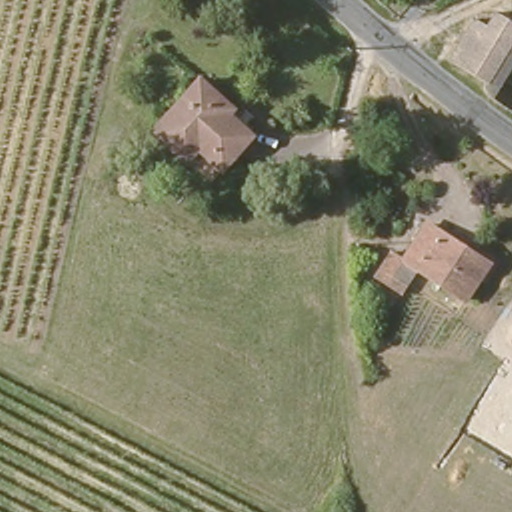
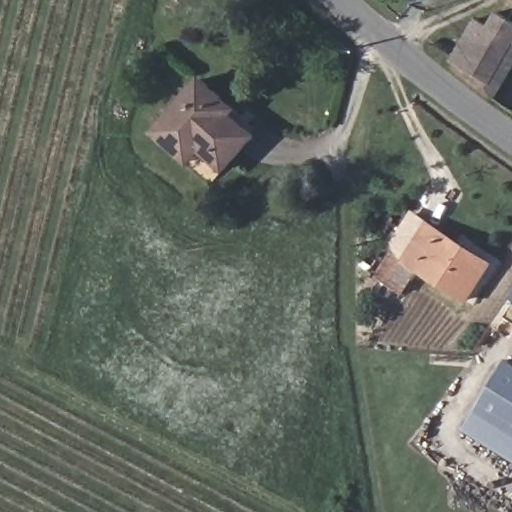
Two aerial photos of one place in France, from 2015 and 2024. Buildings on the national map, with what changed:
unchanged [(486,89),(446,65),(472,22),(488,29),(494,15),(512,26),(512,45),(486,89)]
unchanged [(169,153),(151,132),(203,81),(223,102),(235,115),(229,122),(252,144),(219,173),(197,151),(182,166),(169,153)]
unchanged [(488,268),(464,303),(417,271),(400,296),(375,278),(393,254),(405,261),(429,225),(488,268)]
new [(512,296),(512,301),(509,300),(512,296)]
new [(463,431),(507,360),(512,363),(512,462),(463,431)]

